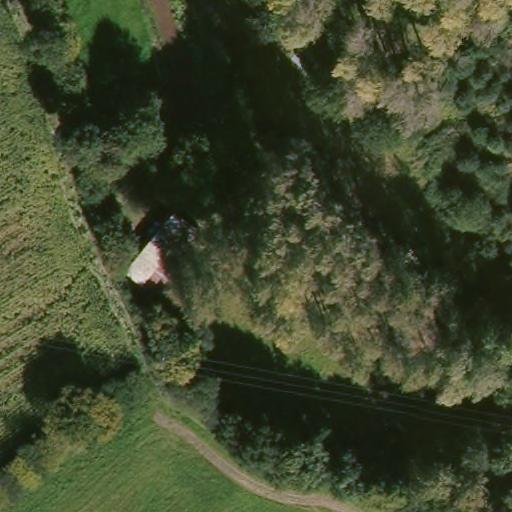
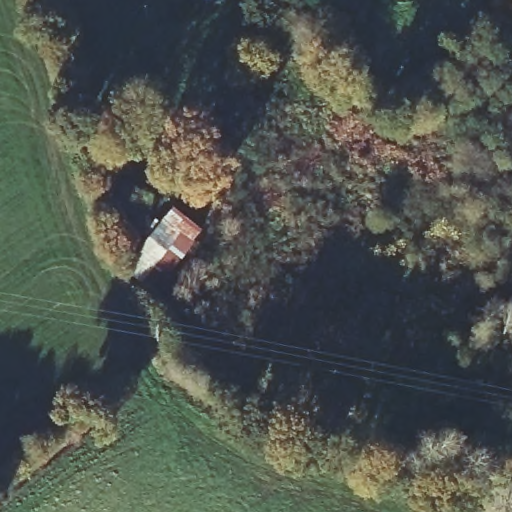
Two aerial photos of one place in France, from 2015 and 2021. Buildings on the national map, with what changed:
unchanged [(167,207),(196,227),(174,261),(166,256),(156,272),(136,257),(167,207)]

